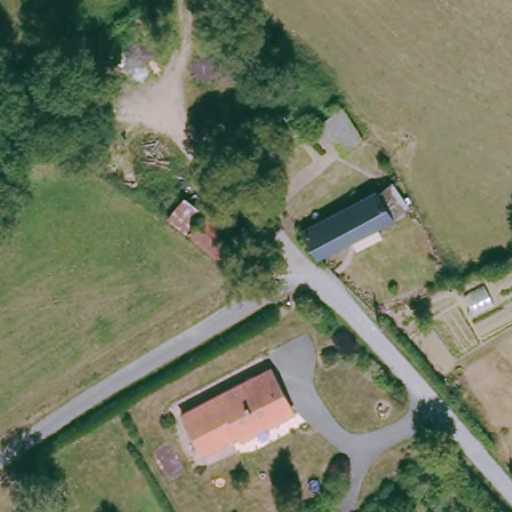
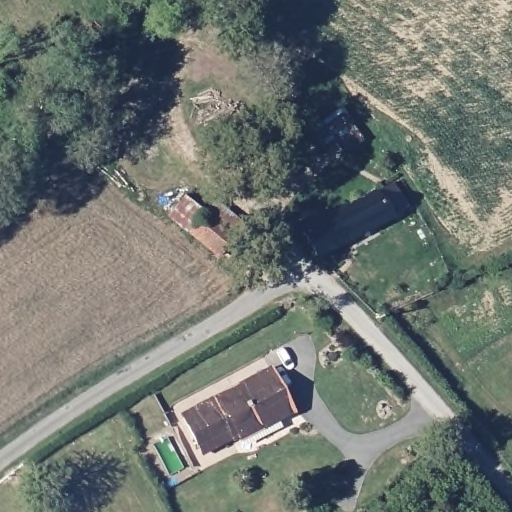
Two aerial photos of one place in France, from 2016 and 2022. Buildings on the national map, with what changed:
unchanged [(339,151),(330,136),(317,145),(306,128),(340,104),(360,141),(339,151)]
unchanged [(396,215),(356,232),(327,249),(318,254),(303,226),(381,186),(396,215)]
unchanged [(168,216),(186,200),(209,222),(194,238),(168,216)]
unchanged [(228,439),(202,453),(182,415),(268,371),(278,390),(289,411),(271,421),(231,443),(228,439)]

